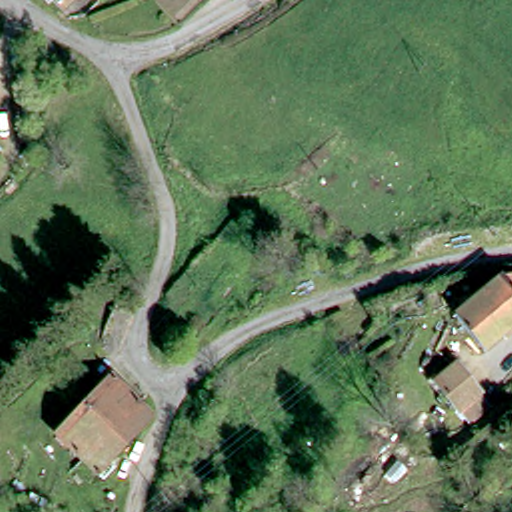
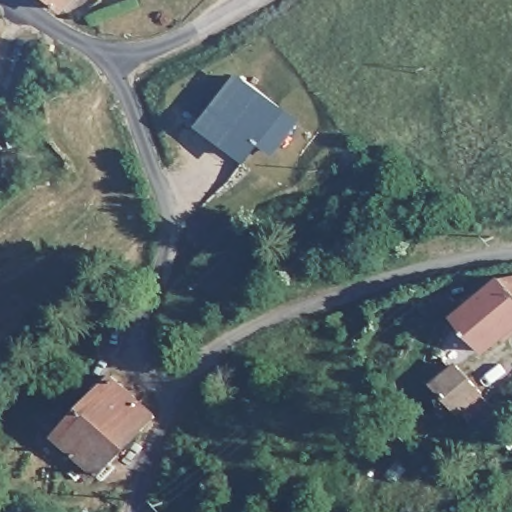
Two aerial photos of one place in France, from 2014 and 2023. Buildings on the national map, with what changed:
unchanged [(55,0),(79,0),(66,12),(55,0)]
new [(241,78),(299,121),(275,153),(260,143),(249,158),(222,137),(233,121),(217,110),(241,78)]
unchanged [(0,138),(12,152),(0,162),(0,138)]
unchanged [(512,291),(512,337),(487,358),(459,325),(507,285),(512,291)]
unchanged [(132,318),(120,348),(97,338),(111,308),(132,318)]
unchanged [(510,350),(512,348),(512,353),(510,350)]
unchanged [(49,429),(105,366),(152,411),(95,476),(49,429)]
unchanged [(459,421),(437,385),(460,368),(487,401),(459,421)]

